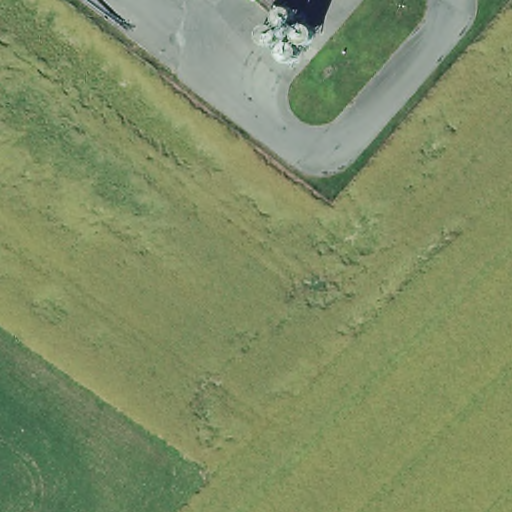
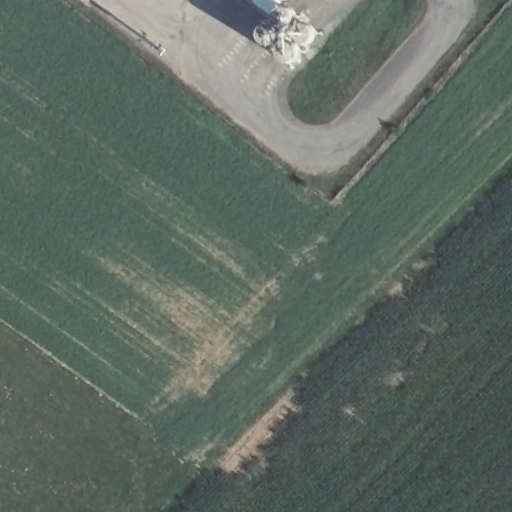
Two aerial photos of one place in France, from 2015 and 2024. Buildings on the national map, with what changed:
unchanged [(255,38),(288,0),(324,35),(290,70),(255,38)]

